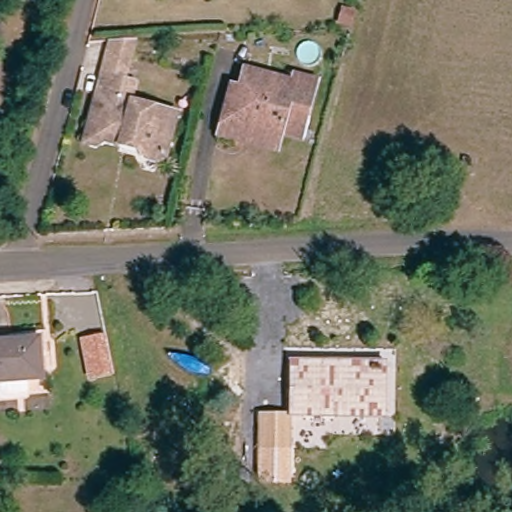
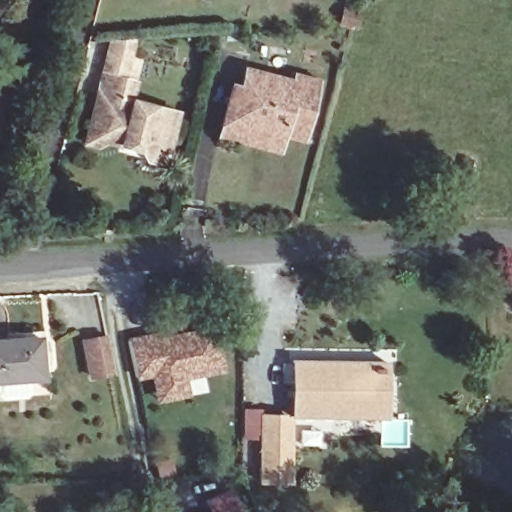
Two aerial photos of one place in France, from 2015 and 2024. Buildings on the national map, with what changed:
unchanged [(361,11),(357,23),(346,20),(350,7),(361,11)]
unchanged [(101,140),(92,146),(80,143),(97,82),(99,74),(108,40),(131,39),(120,80),(130,83),(128,91),(126,101),(152,108),(172,114),(169,126),(160,157),(151,162),(141,159),(115,152),(117,145),(101,140)]
unchanged [(231,87),(240,89),(245,69),(294,82),(296,76),(316,81),(305,127),(227,106),(227,97),(231,87)]
unchanged [(242,142),(219,135),(227,106),(305,127),(302,139),(283,136),(280,152),(242,142)]
new [(158,398),(156,386),(153,372),(136,375),(129,339),(147,335),(155,333),(156,338),(214,327),(222,368),(183,376),(184,380),(187,392),(158,398)]
new [(107,336),(115,372),(93,377),(86,341),(107,336)]
unchanged [(42,378),(0,380),(0,342),(40,339),(42,378)]
unchanged [(387,417),(338,416),(293,416),(294,361),(381,362),(387,362),(387,417)]
unchanged [(257,414),(291,413),(292,483),(258,483),(257,414)]
new [(230,490),(240,512),(209,512),(205,501),(230,490)]

